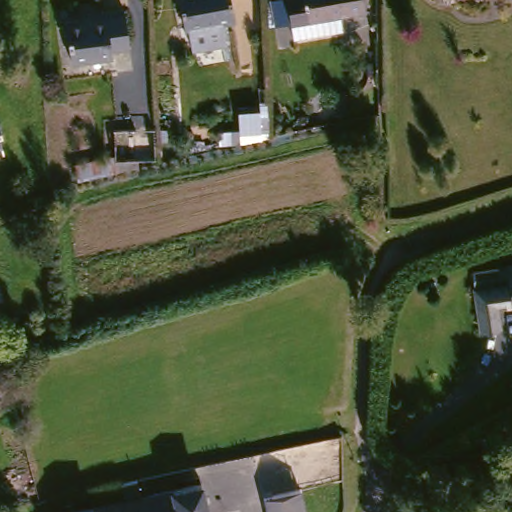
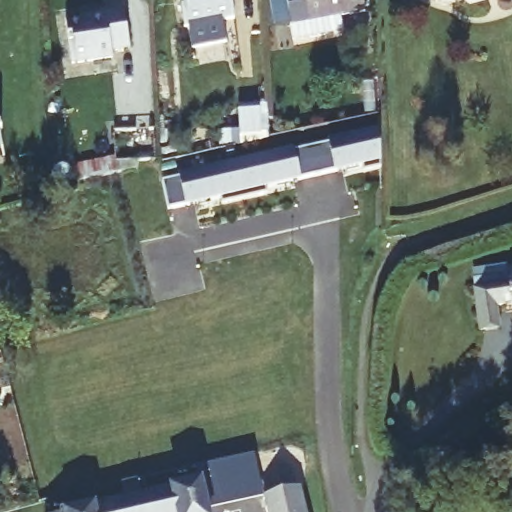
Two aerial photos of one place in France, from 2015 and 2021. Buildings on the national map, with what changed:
unchanged [(226,19),(174,24),(172,0),(224,0),(226,19)]
unchanged [(280,0),(359,0),(360,6),(305,24),(290,29),(288,24),(280,0)]
unchanged [(103,54),(103,59),(63,65),(58,24),(98,17),(98,12),(115,10),(120,51),(103,54)]
new [(178,176),(178,174),(293,147),(293,148),(327,140),(327,139),(380,125),(382,163),(359,169),(358,162),(265,185),(266,191),(220,202),(219,196),(167,208),(160,180),(178,176)]
demolished [(146,165),(106,164),(106,133),(149,134),(146,165)]
unchanged [(473,308),(473,287),(508,287),(508,268),(512,268),(512,308),(499,308),(499,334),(473,334),(473,308)]
unchanged [(214,512),(73,512),(71,503),(207,477),(214,512)]
unchanged [(301,492),(303,512),(263,512),(261,497),(301,492)]
unchanged [(71,503),(73,512),(53,512),(58,506),(71,503)]

